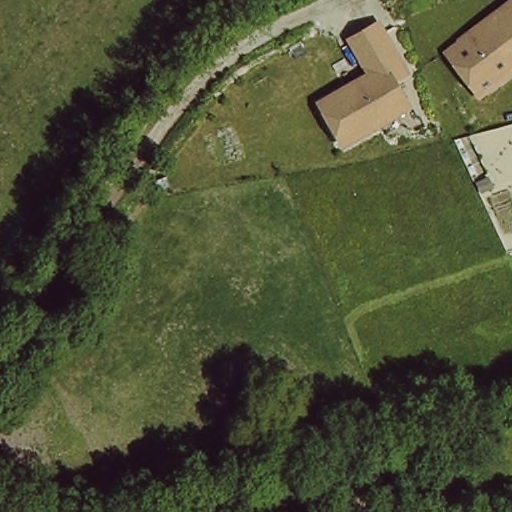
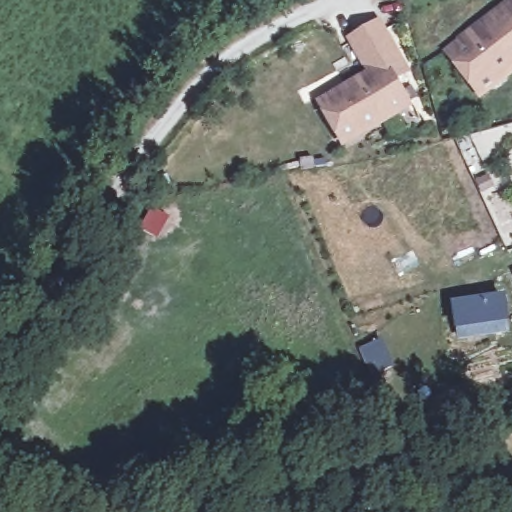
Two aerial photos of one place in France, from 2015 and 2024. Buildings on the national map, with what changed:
unchanged [(482,100),(445,51),(512,0),(512,77),(482,100)]
unchanged [(412,76),(400,81),(415,110),(343,146),(317,99),(366,73),(345,37),(381,18),(412,76)]
new [(459,340),(452,302),(505,295),(507,333),(459,340)]

